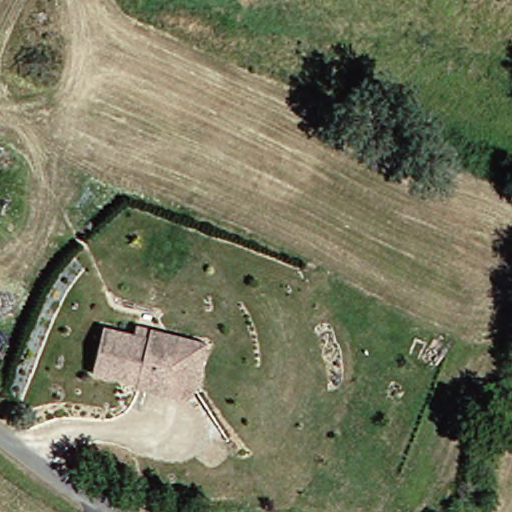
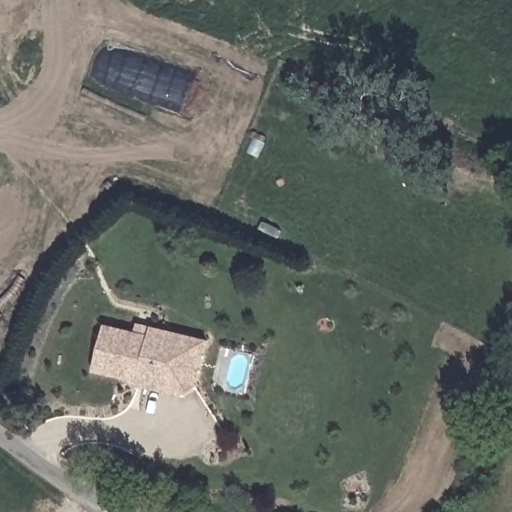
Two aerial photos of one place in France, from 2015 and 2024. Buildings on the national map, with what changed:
unchanged [(207,342),(198,389),(184,398),(140,389),(140,385),(95,374),(105,328),(149,339),(152,330),(207,342)]

